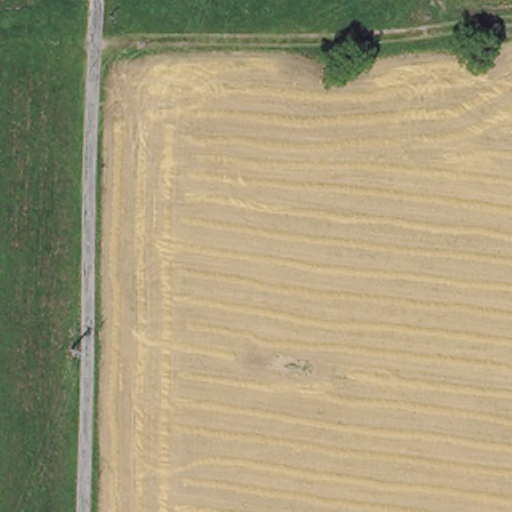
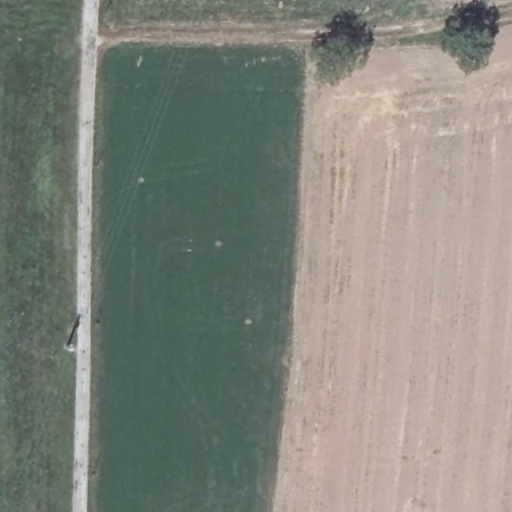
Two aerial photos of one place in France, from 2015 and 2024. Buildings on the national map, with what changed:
[]

